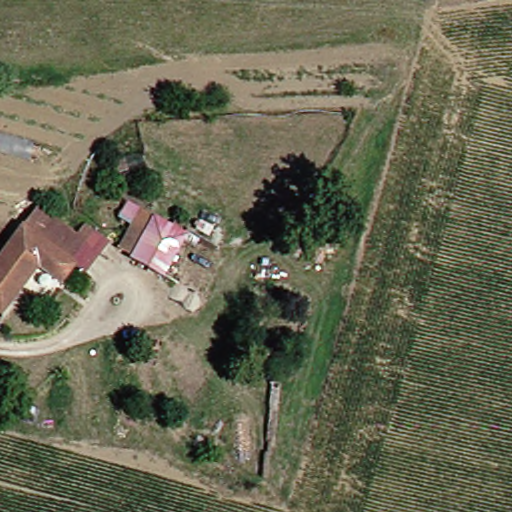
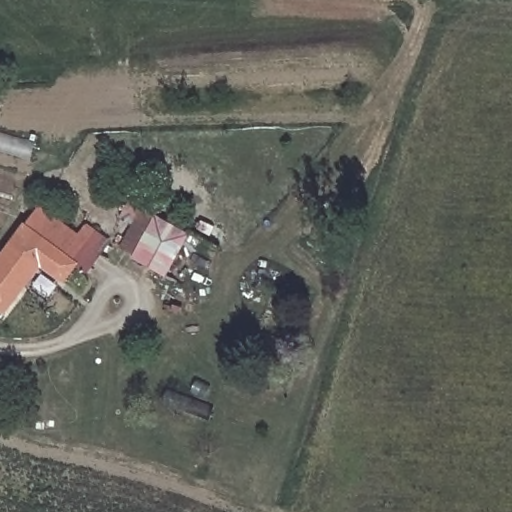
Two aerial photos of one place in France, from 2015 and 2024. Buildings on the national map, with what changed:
unchanged [(156,224),(134,262),(103,245),(126,206),(156,224)]
unchanged [(67,269),(56,283),(36,267),(0,314),(0,252),(30,212),(66,239),(74,229),(99,247),(76,276),(67,269)]
unchanged [(159,217),(188,234),(164,278),(134,262),(156,224),(159,217)]

